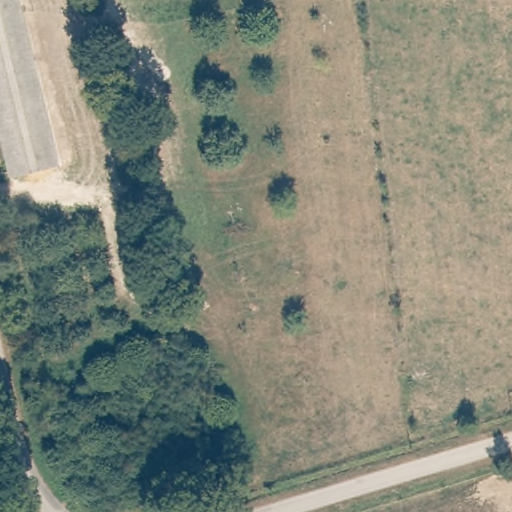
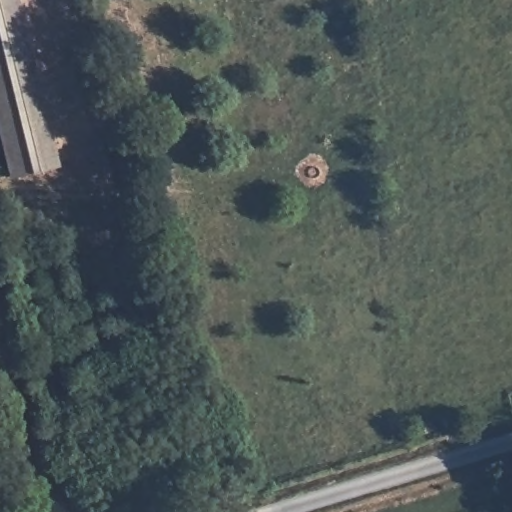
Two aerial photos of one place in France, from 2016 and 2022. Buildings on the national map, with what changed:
unchanged [(57,165),(12,177),(0,124),(0,0),(19,0),(57,165)]

